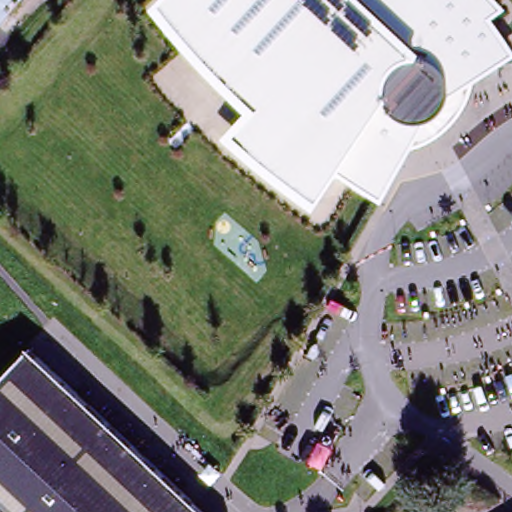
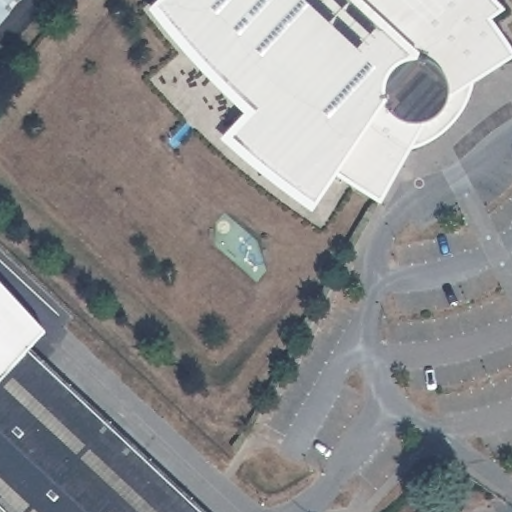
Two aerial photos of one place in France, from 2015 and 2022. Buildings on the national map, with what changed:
unchanged [(0,21),(0,0),(19,0),(0,21)]
unchanged [(506,10),(492,24),(512,57),(512,61),(471,88),(461,114),(446,131),(410,153),(383,202),(339,178),(317,212),(222,139),(249,112),(151,7),(158,0),(496,0),(506,10)]
new [(42,332),(27,347),(0,376),(0,287),(42,332)]
unchanged [(203,512),(7,512),(0,505),(0,376),(27,347),(203,512)]
unchanged [(0,512),(0,505),(7,512),(0,512)]

